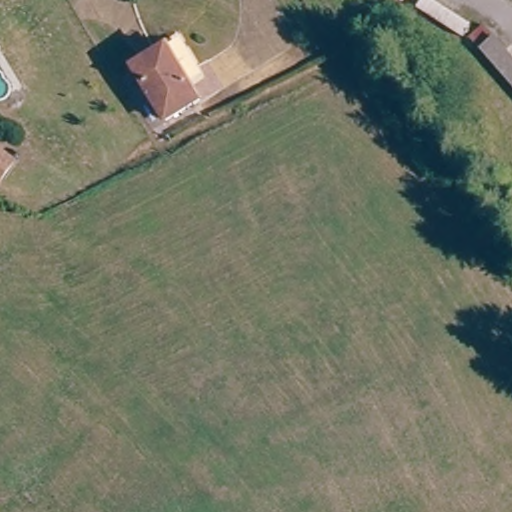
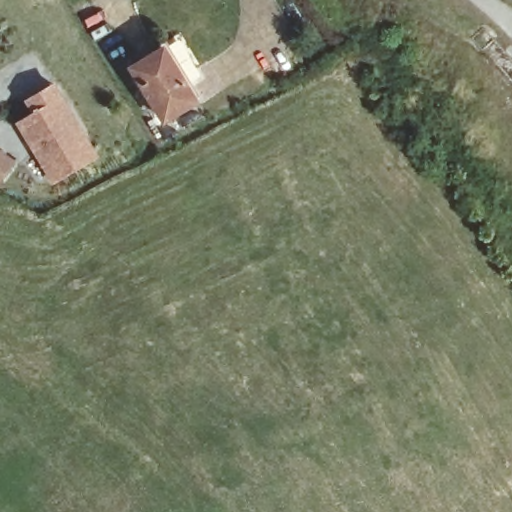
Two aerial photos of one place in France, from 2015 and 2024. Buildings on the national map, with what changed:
unchanged [(500,7),(494,0),(509,0),(500,7)]
unchanged [(200,103),(165,122),(135,70),(170,50),(200,103)]
new [(30,112),(23,99),(55,80),(99,156),(51,184),(14,121),(30,112)]
unchanged [(0,183),(0,156),(14,169),(0,183)]

